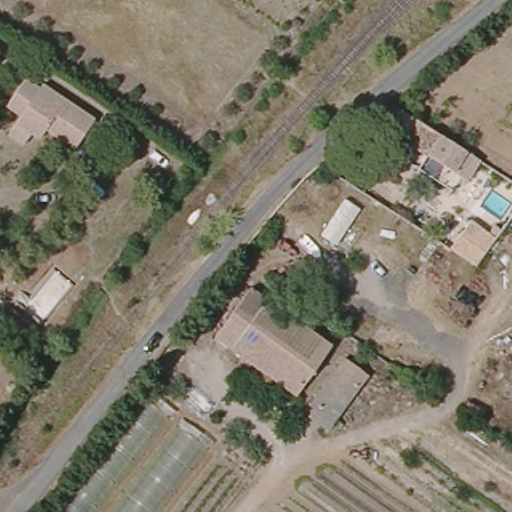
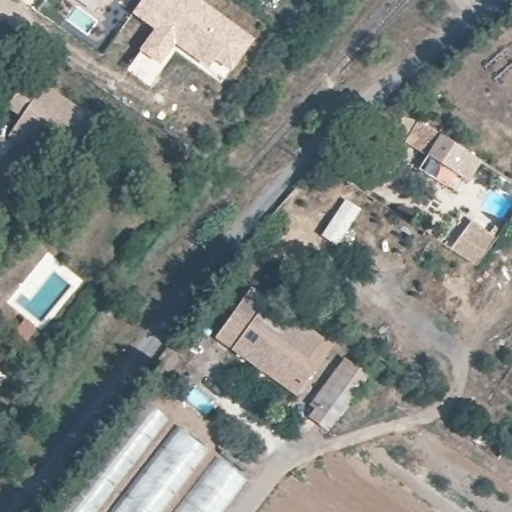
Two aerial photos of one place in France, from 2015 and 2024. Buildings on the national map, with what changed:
new [(90,0),(104,0),(99,7),(90,0)]
new [(224,0),(218,9),(256,37),(230,72),(214,62),(208,69),(175,47),(161,67),(137,51),(152,29),(131,13),(140,0),(224,0)]
unchanged [(1,53),(0,54),(0,53),(1,53)]
unchanged [(74,156),(46,139),(32,155),(7,130),(16,120),(5,108),(30,77),(100,117),(74,156)]
unchanged [(384,133),(372,126),(392,108),(405,116),(384,133)]
unchanged [(471,184),(428,157),(409,145),(421,127),(441,139),(483,165),(471,184)]
unchanged [(475,267),(450,247),(470,220),(497,240),(475,267)]
unchanged [(259,366),(219,337),(256,287),(336,347),(308,386),(299,397),(259,366)]
unchanged [(330,429),(314,417),(318,411),(315,408),(312,406),(345,361),(350,363),(369,379),(330,429)]
unchanged [(221,512),(53,512),(146,393),(251,475),(221,512)]

